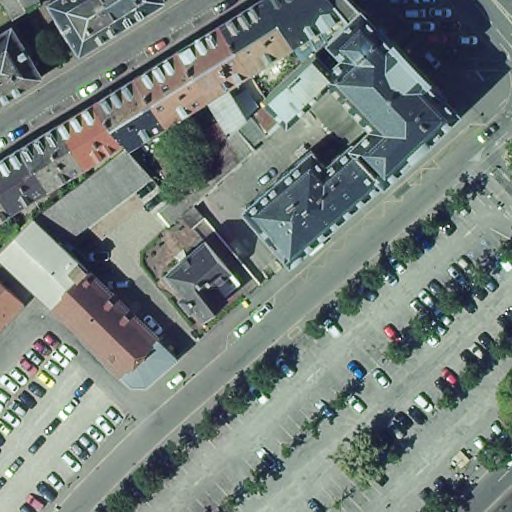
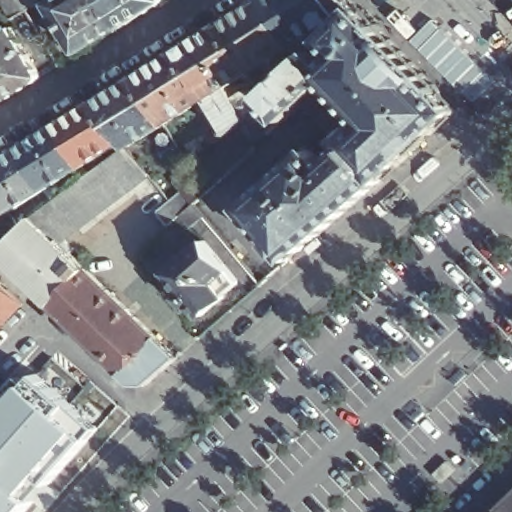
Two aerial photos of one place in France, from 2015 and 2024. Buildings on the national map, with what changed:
unchanged [(46,0),(47,1),(33,9),(19,17),(9,0),(46,0)]
unchanged [(55,2),(58,0),(113,0),(128,26),(85,52),(55,2)]
unchanged [(113,0),(169,0),(128,26),(113,0)]
unchanged [(201,167),(209,160),(219,151),(221,149),(225,145),(215,130),(231,121),(217,98),(175,124),(145,77),(188,51),(229,24),(269,0),(362,0),(370,8),(387,25),(389,23),(453,91),(451,92),(468,110),(451,126),(412,163),(412,164),(394,179),(361,142),(319,100),(297,120),(293,116),(276,132),(263,145),(266,149),(253,160),(241,171),(229,182),(216,192),(204,204),(193,213),(181,224),(169,211),(181,200),(193,191),(185,182),(172,161),(191,150),(201,167)]
unchanged [(0,94),(0,35),(0,36),(18,25),(48,75),(5,102),(0,94)]
unchanged [(137,147),(133,142),(103,103),(145,77),(175,124),(137,147)]
unchanged [(0,94),(5,102),(0,105),(0,94)]
unchanged [(96,171),(93,167),(56,189),(31,147),(67,126),(103,103),(133,142),(98,164),(100,168),(96,171)]
unchanged [(321,149),(335,165),(361,142),(394,179),(300,260),(254,207),(321,149)]
unchanged [(0,224),(0,167),(31,147),(56,189),(32,205),(41,219),(43,217),(64,201),(69,197),(83,187),(95,178),(97,177),(99,176),(111,167),(115,164),(125,156),(137,147),(160,174),(146,185),(132,195),(118,205),(104,216),(90,226),(87,222),(65,238),(97,268),(61,306),(49,295),(6,255),(31,229),(20,212),(0,224)]
unchanged [(229,300),(231,301),(208,320),(173,277),(211,245),(245,286),(229,300)]
unchanged [(128,372),(61,306),(97,268),(167,336),(131,373),(128,372)]
unchanged [(0,339),(0,270),(34,303),(0,339)]
unchanged [(156,385),(141,384),(131,373),(167,336),(188,357),(156,385)]
new [(38,372),(48,381),(65,361),(119,406),(25,512),(0,512),(0,403),(31,367),(38,372)]
unchanged [(462,467),(453,457),(461,449),(470,458),(462,467)]
unchanged [(512,499),(512,512),(498,512),(512,499)]

